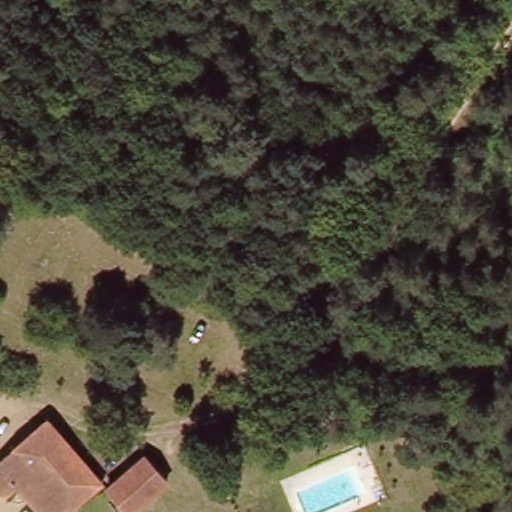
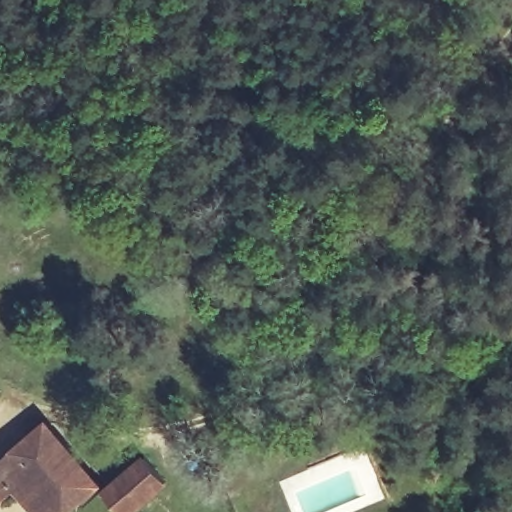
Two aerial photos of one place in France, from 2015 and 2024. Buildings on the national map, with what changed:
unchanged [(7,385),(0,395),(0,381),(7,385)]
unchanged [(62,433),(104,479),(65,512),(46,512),(25,488),(7,499),(0,491),(0,465),(54,421),(62,433)]
unchanged [(169,477),(130,510),(110,486),(148,454),(169,477)]

